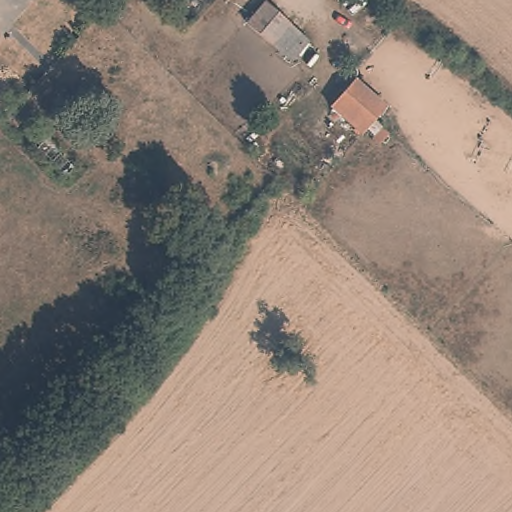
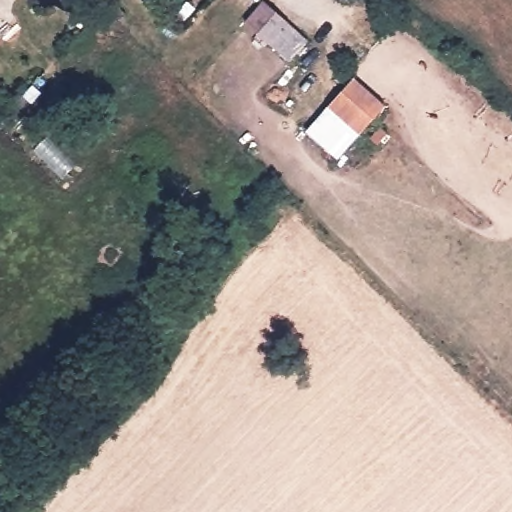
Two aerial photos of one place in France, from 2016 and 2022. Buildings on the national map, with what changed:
unchanged [(269,48),(246,28),(266,7),(288,26),(269,48)]
unchanged [(387,106),(363,132),(331,102),(355,76),(387,106)]

